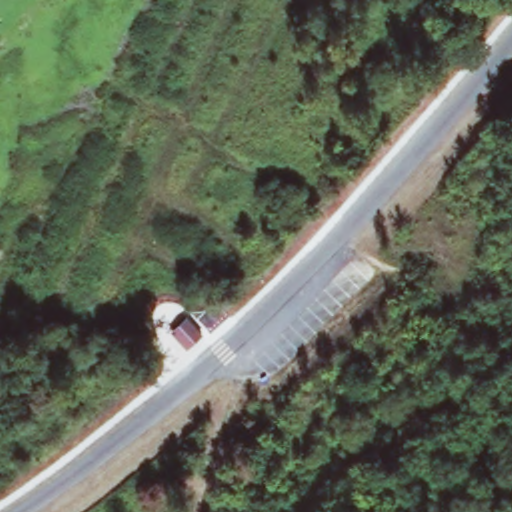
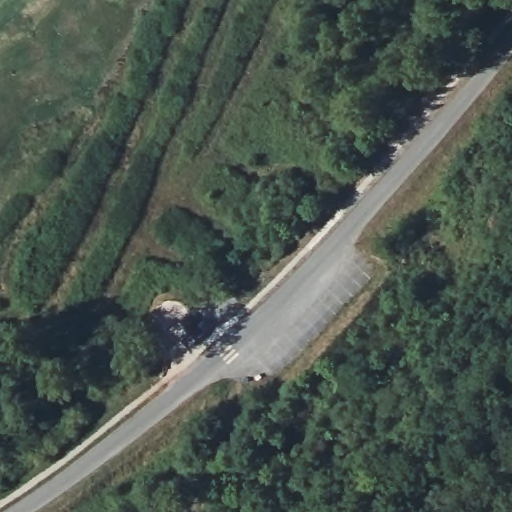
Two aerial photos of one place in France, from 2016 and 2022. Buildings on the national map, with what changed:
unchanged [(202,326),(210,337),(191,352),(173,327),(191,313),(202,326)]

